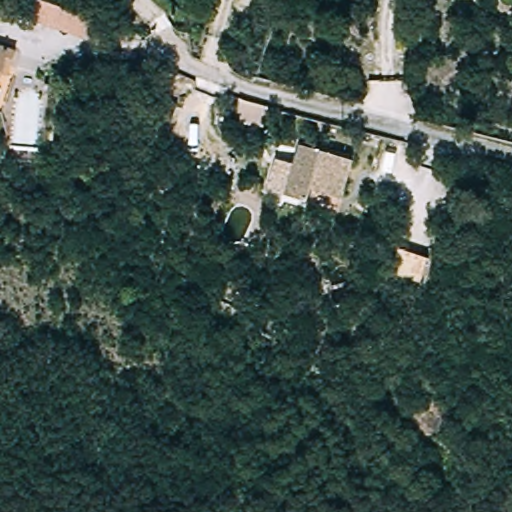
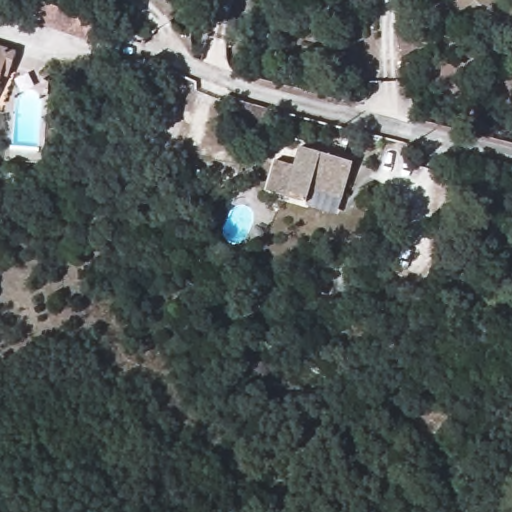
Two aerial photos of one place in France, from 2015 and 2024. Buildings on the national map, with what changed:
unchanged [(29,20),(37,0),(38,0),(95,20),(85,44),(29,20)]
unchanged [(11,67),(4,65),(0,78),(0,45),(16,50),(11,67)]
unchanged [(300,151),(353,165),(343,202),(310,194),(306,206),(286,201),(300,151)]

